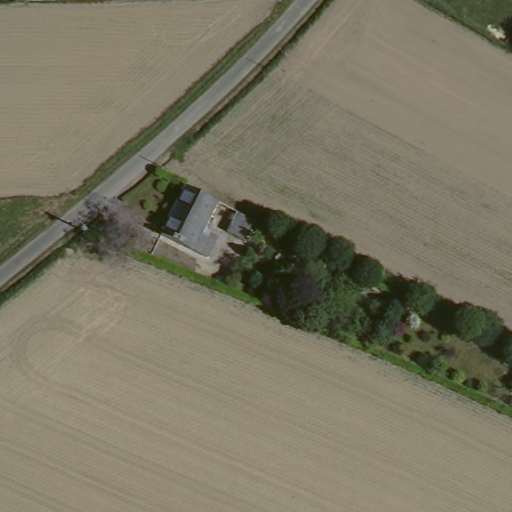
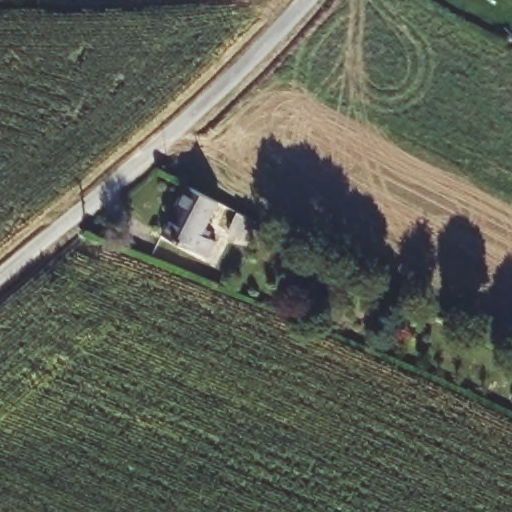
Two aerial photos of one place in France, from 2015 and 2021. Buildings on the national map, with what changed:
unchanged [(214,237),(206,252),(160,226),(185,184),(215,201),(201,229),(214,237)]
unchanged [(227,234),(236,217),(250,226),(243,243),(227,234)]

